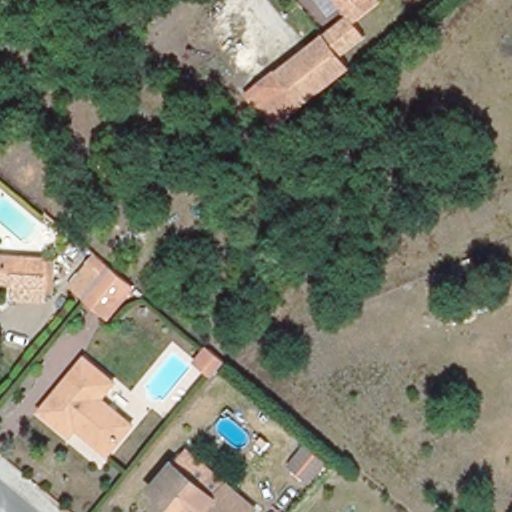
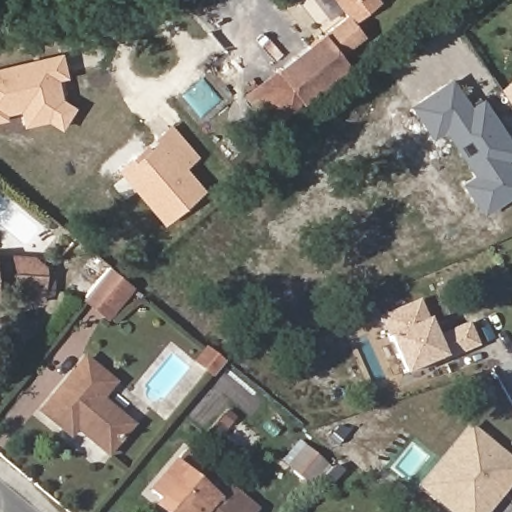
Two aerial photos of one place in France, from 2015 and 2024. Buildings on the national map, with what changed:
demolished [(324,26),(306,0),(336,0),(346,10),(324,26)]
unchanged [(355,20),(350,15),(346,10),(336,0),(381,0),(355,20)]
unchanged [(342,56),(354,71),(273,131),(244,94),(350,15),(355,20),(366,36),(342,56)]
new [(69,78),(57,82),(64,105),(74,112),(62,130),(49,122),(23,128),(21,111),(0,118),(0,68),(62,53),(69,78)]
new [(451,78),(469,106),(482,99),(512,144),(512,157),(507,161),(512,169),(512,196),(481,216),(459,184),(472,176),(443,132),(431,139),(407,106),(451,78)]
new [(153,140),(172,124),(200,157),(186,168),(199,184),(200,197),(164,226),(120,174),(156,142),(153,140)]
demolished [(137,219),(157,235),(135,261),(115,244),(137,219)]
unchanged [(81,296),(107,263),(135,285),(110,320),(81,296)]
unchanged [(0,267),(52,271),(50,300),(0,298),(0,267)]
demolished [(242,322),(225,308),(235,297),(252,311),(242,322)]
new [(404,376),(378,317),(420,298),(436,335),(468,321),(480,346),(442,362),(404,376)]
unchanged [(110,375),(96,391),(127,418),(102,446),(71,418),(63,427),(36,403),(82,350),(110,375)]
new [(490,512),(447,512),(417,487),(470,423),(512,458),(512,485),(490,512)]
unchanged [(307,487),(284,467),(305,442),(326,460),(307,487)]
unchanged [(162,492),(183,468),(219,497),(229,486),(256,510),(254,512),(169,512),(162,507),(170,499),(162,492)]

